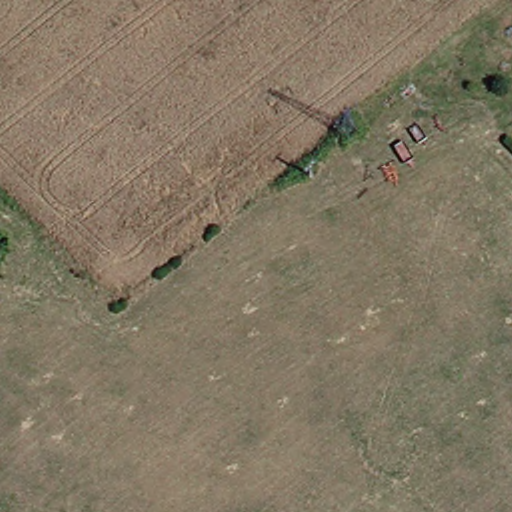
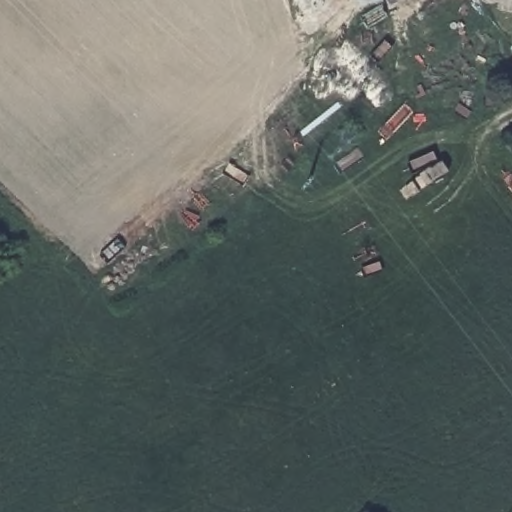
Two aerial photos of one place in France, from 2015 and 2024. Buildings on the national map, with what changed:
[]

